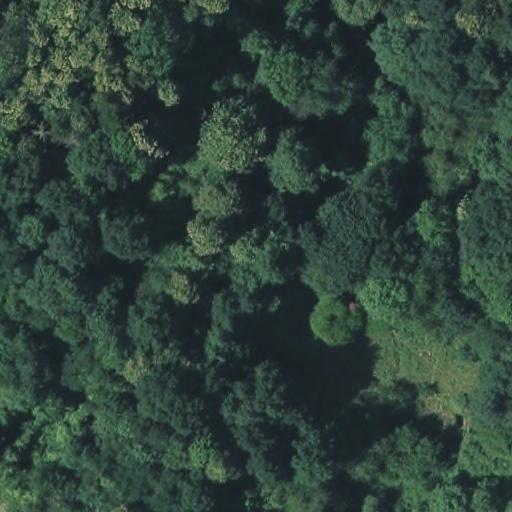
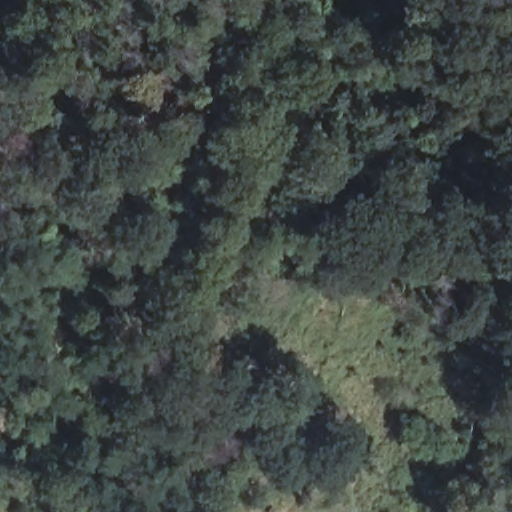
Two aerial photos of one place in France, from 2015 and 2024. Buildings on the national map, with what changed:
unchanged [(318,59),(308,47),(324,34),(334,46),(318,59)]
unchanged [(332,314),(335,308),(339,310),(343,301),(353,306),(345,320),(332,314)]

